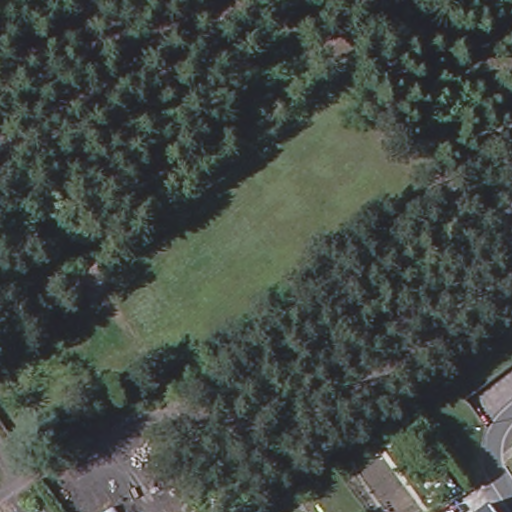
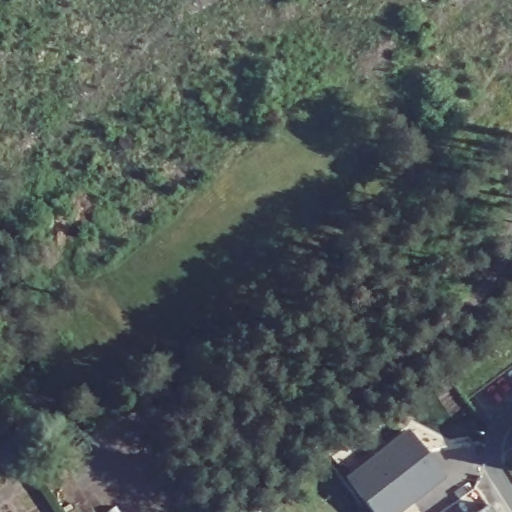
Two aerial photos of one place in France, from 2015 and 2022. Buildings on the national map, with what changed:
new [(447,477),(402,512),(375,512),(348,477),(410,430),(447,477)]
new [(479,512),(486,507),(489,512),(479,512)]

